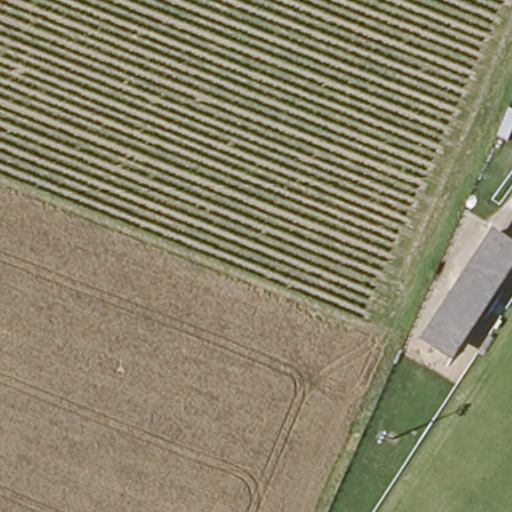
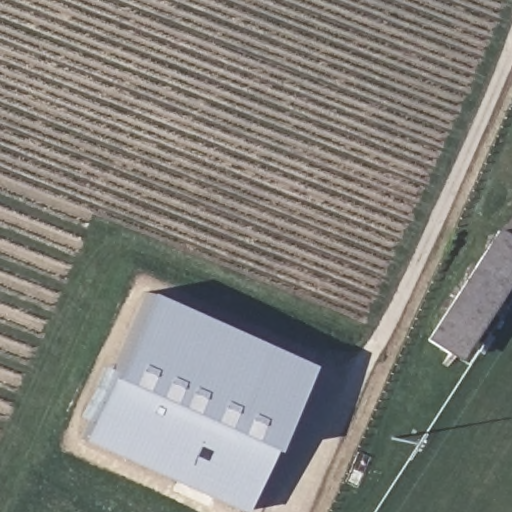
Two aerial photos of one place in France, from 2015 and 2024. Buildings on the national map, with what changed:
unchanged [(512,277),(458,358),(426,337),(444,310),(440,308),(455,284),(459,288),(498,227),(512,235),(512,277)]
new [(150,292),(313,364),(247,511),(85,439),(150,292)]

